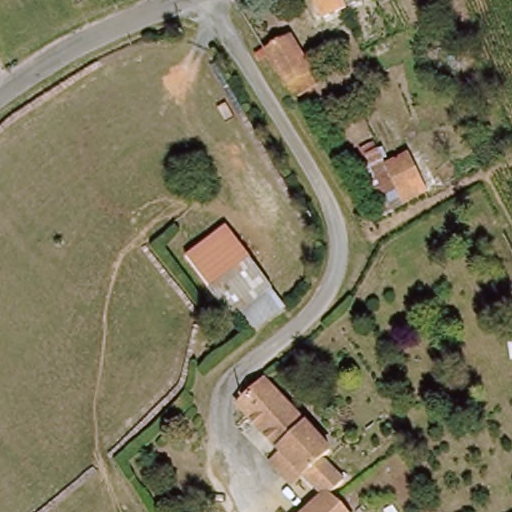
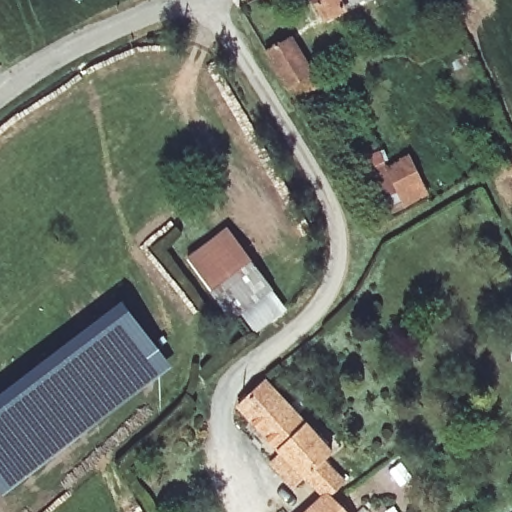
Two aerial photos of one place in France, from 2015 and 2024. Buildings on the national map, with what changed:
unchanged [(315,0),(349,0),(321,14),(315,0)]
unchanged [(295,99),(267,51),(291,37),(320,84),(295,99)]
unchanged [(383,203),(357,161),(380,148),(387,163),(408,151),(426,183),(383,203)]
unchanged [(234,317),(187,256),(224,226),(271,288),(234,317)]
new [(122,299),(174,366),(1,498),(0,497),(0,392),(122,299)]
unchanged [(236,401),(265,377),(339,456),(331,464),(343,479),(330,491),(347,512),(299,512),(320,492),(236,401)]

